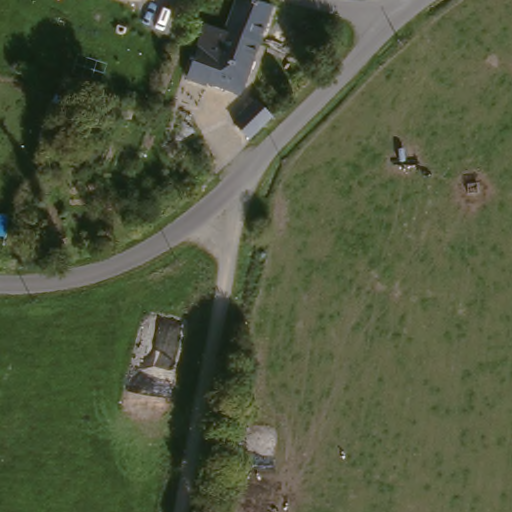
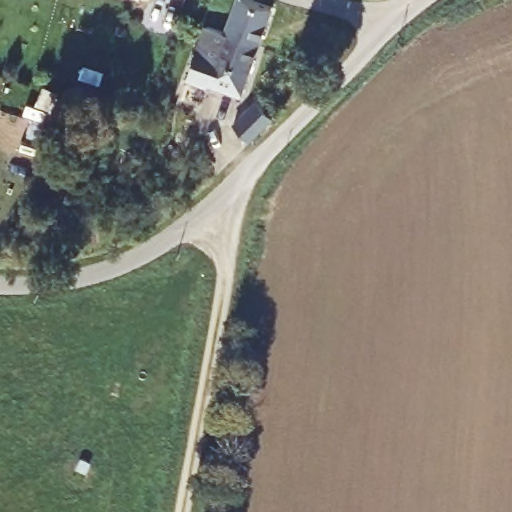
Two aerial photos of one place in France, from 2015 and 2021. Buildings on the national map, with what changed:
unchanged [(230,19),(237,0),(275,0),(263,31),(230,19)]
unchanged [(244,83),(212,72),(230,19),(263,31),(244,83)]

